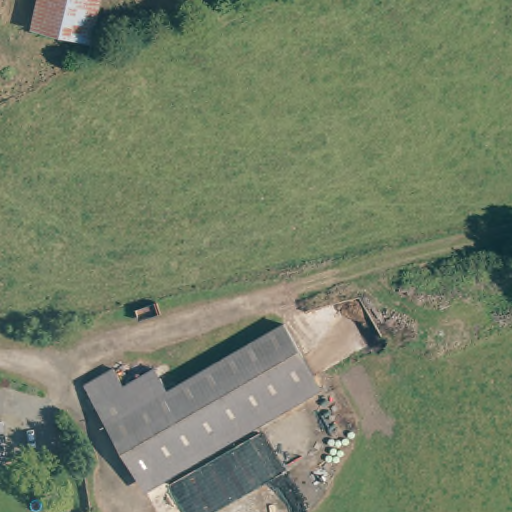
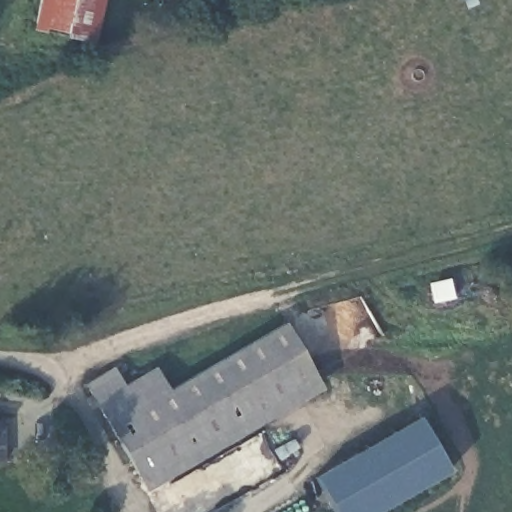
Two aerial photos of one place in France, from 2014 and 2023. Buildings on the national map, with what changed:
unchanged [(47,0),(98,0),(90,39),(42,29),(47,0)]
unchanged [(176,401),(293,334),(323,386),(147,488),(117,435),(176,401)]
unchanged [(94,395),(122,379),(132,397),(162,379),(176,401),(117,435),(94,395)]
new [(316,475),(417,417),(448,471),(376,512),(334,512),(316,475)]
unchanged [(0,456),(0,419),(2,418),(2,455),(0,456)]

